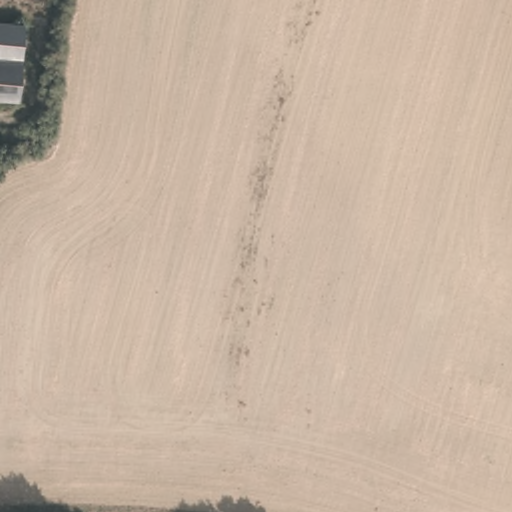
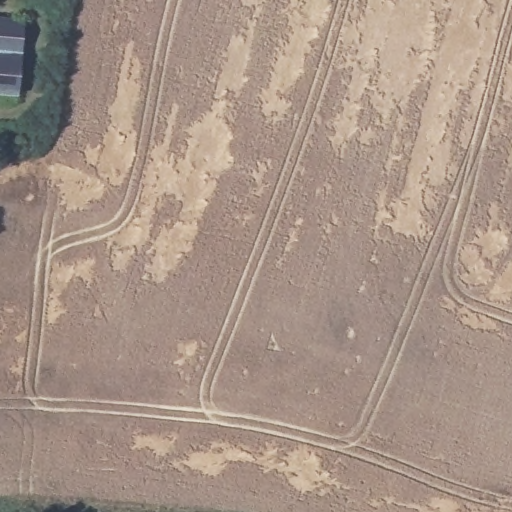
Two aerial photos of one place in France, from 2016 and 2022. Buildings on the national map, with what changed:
unchanged [(19,104),(0,102),(0,24),(22,26),(19,104)]

